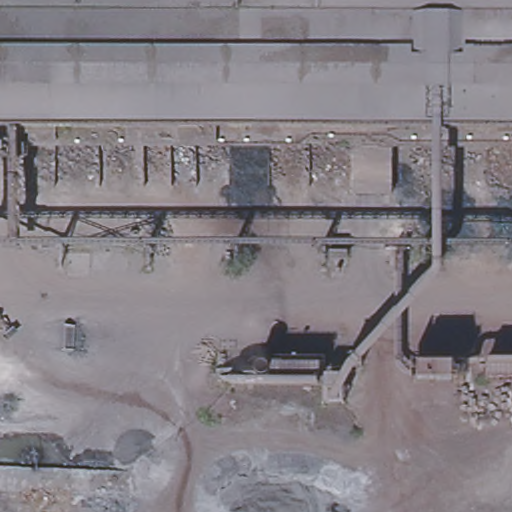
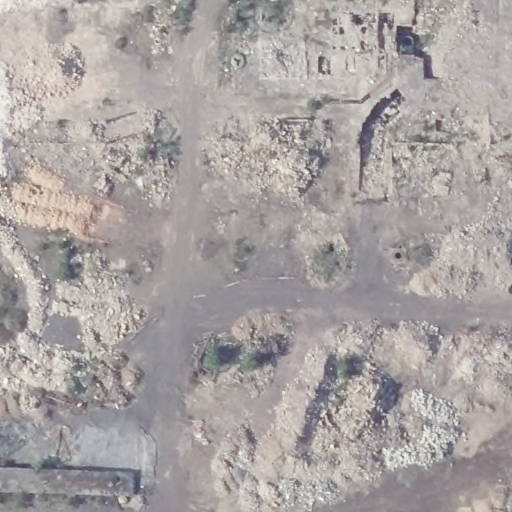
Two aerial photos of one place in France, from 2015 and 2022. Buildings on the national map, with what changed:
demolished [(369,130),(0,133),(0,0),(512,0),(512,130),(387,130),(386,194),(377,194),(369,130)]
new [(331,57),(331,9),(377,10),(377,56),(377,77),(331,77),(331,57)]
new [(261,40),(306,41),(306,77),(262,78),(261,40)]

